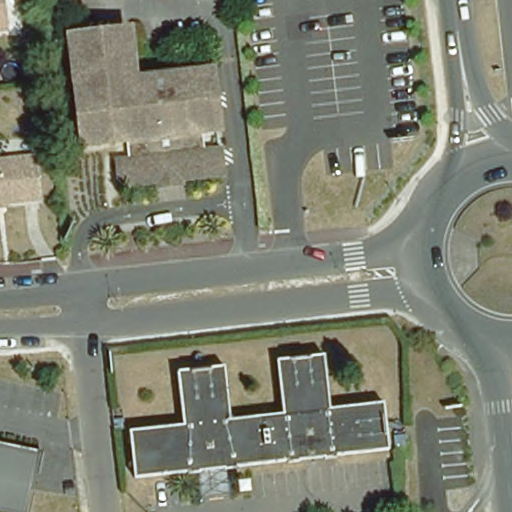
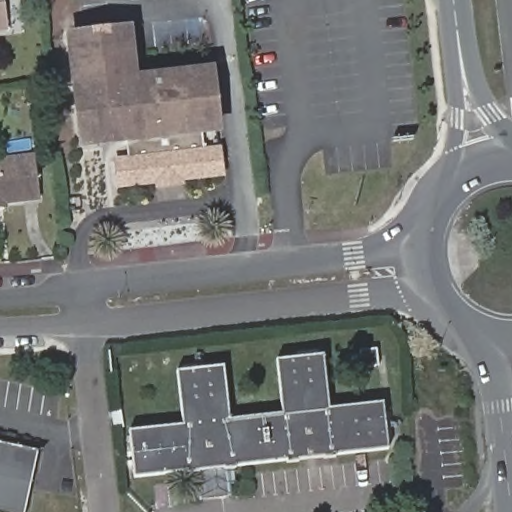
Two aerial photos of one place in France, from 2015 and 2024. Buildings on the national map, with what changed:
unchanged [(0,34),(0,0),(4,0),(8,30),(9,32),(0,34)]
unchanged [(159,182),(159,177),(121,182),(118,157),(130,155),(128,135),(84,140),(72,33),(130,26),(134,59),(135,75),(212,67),(219,125),(204,126),(207,146),(221,144),(224,170),(184,175),(185,179),(159,182)]
unchanged [(38,76),(20,78),(18,66),(37,64),(38,76)]
unchanged [(42,99),(27,101),(25,88),(40,87),(42,99)]
unchanged [(33,158),(38,202),(4,206),(5,209),(0,209),(0,162),(33,158)]
unchanged [(199,502),(195,477),(186,477),(186,476),(133,482),(128,436),(181,428),(176,375),(222,371),(229,422),(281,416),(277,363),(323,358),(330,410),(380,405),(382,427),(389,426),(389,432),(383,433),(385,452),(334,458),(334,461),(323,462),(322,460),(298,462),(297,465),(284,467),(284,464),(234,469),(234,472),(223,474),(226,500),(199,502)]
unchanged [(29,512),(0,512),(0,444),(40,452),(29,512)]

